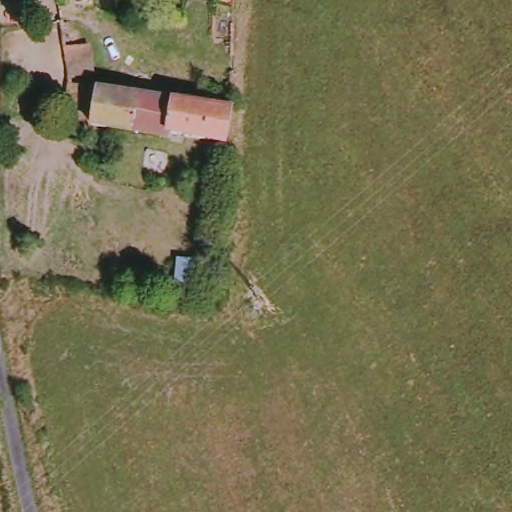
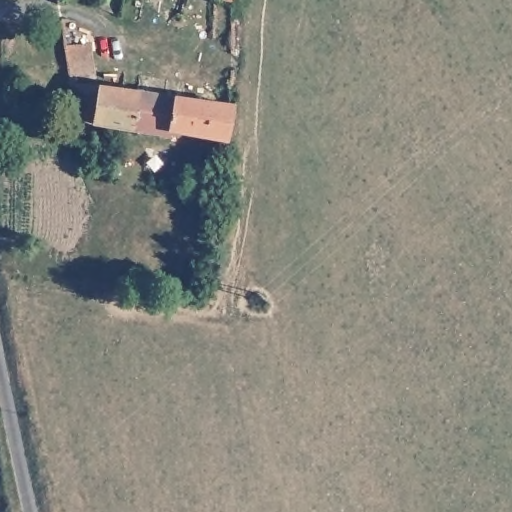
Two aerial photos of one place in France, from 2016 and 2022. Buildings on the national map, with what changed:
unchanged [(94,131),(95,108),(69,105),(71,88),(230,111),(227,143),(224,143),(94,131)]

